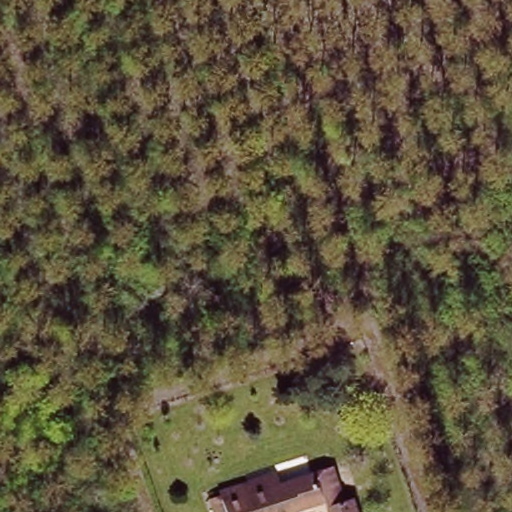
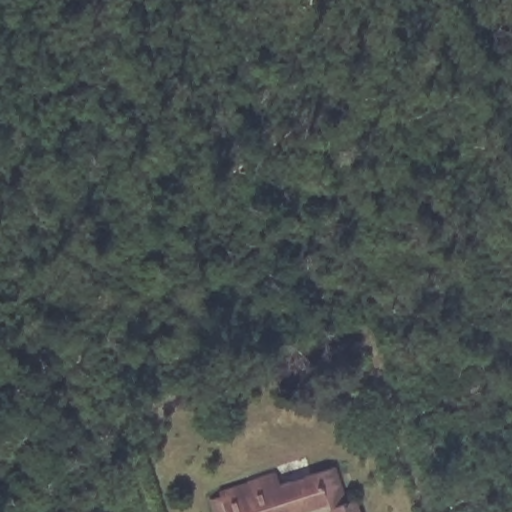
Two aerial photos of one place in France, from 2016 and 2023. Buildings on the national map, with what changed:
unchanged [(332,502),(288,512),(222,512),(217,489),(225,487),(225,481),(256,475),(287,471),(287,479),(344,468),(350,499),(360,497),(364,512),(336,512),(332,502)]

